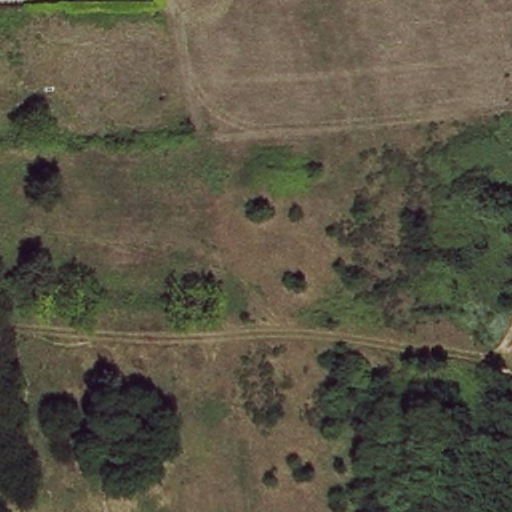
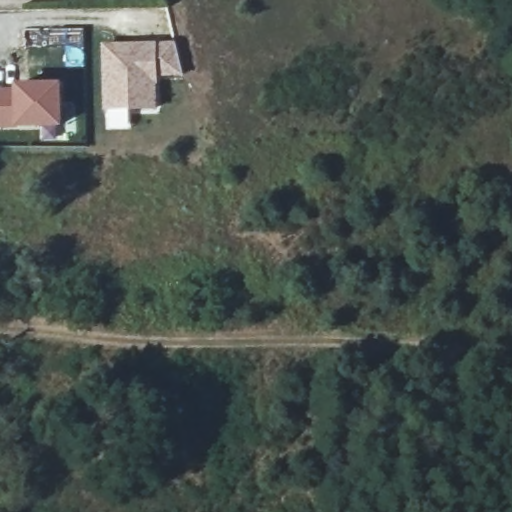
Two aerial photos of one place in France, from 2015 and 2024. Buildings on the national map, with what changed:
new [(103,43),(177,44),(185,76),(159,78),(160,86),(158,86),(159,109),(104,111),(103,43)]
new [(18,127),(0,128),(0,88),(63,83),(64,129),(18,127)]

